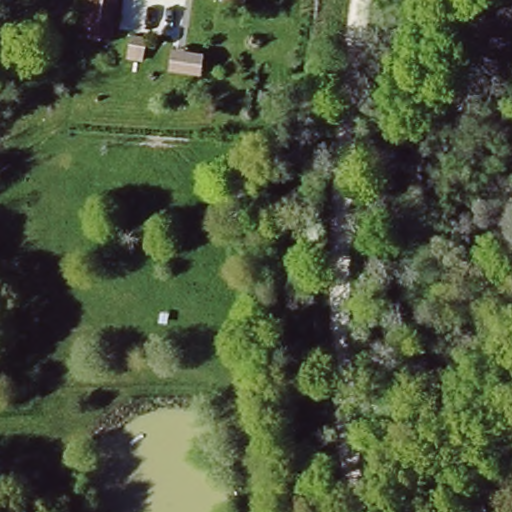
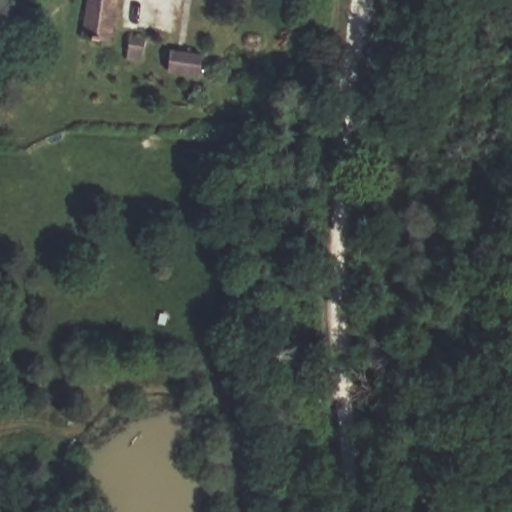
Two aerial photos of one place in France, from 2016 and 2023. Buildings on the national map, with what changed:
unchanged [(90,0),(120,0),(113,45),(82,35),(90,0)]
unchanged [(222,5),(222,0),(243,0),(242,7),(222,5)]
unchanged [(208,46),(203,79),(167,76),(172,44),(208,46)]

